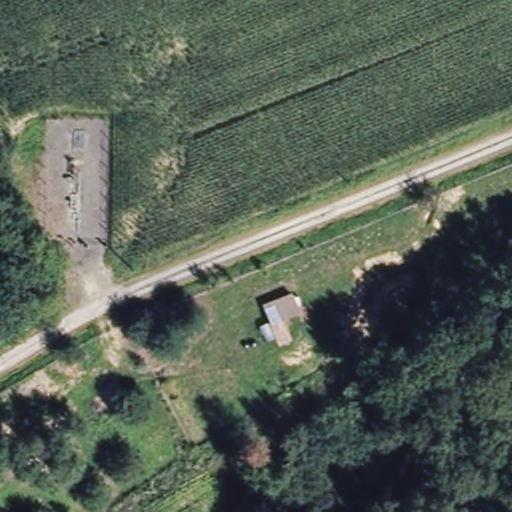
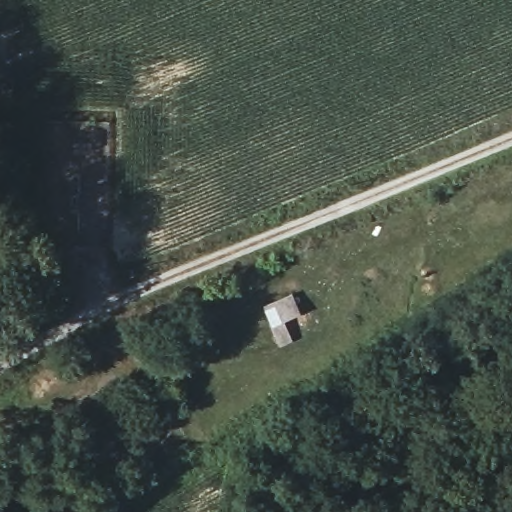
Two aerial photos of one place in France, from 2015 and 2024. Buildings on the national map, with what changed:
unchanged [(293,293),(299,310),(309,306),(314,320),(304,325),(306,328),(290,333),(293,342),(279,347),(276,339),(267,342),(262,328),(270,323),(264,306),(293,293)]

